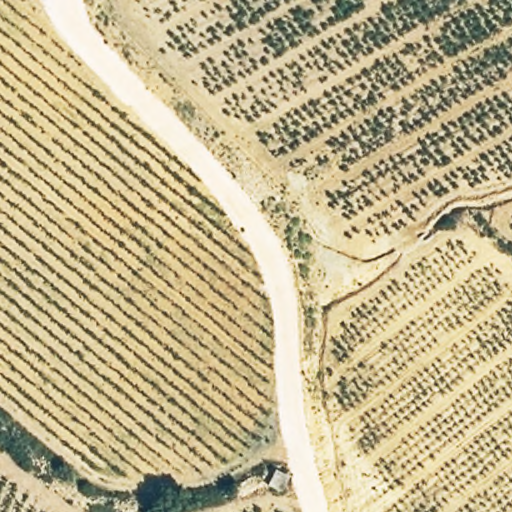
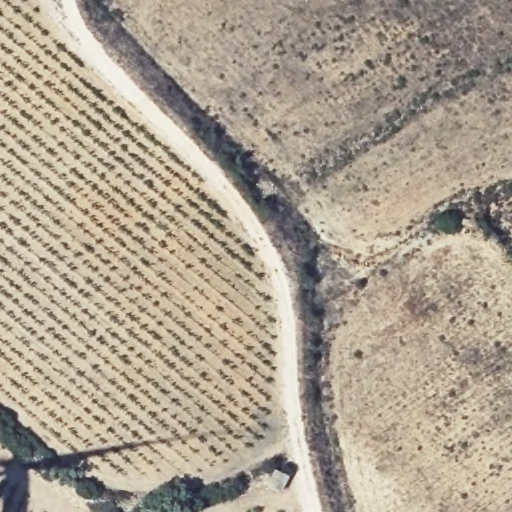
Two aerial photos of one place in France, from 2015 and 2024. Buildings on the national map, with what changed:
unchanged [(289,476),(282,491),(268,486),(274,468),(289,476)]

